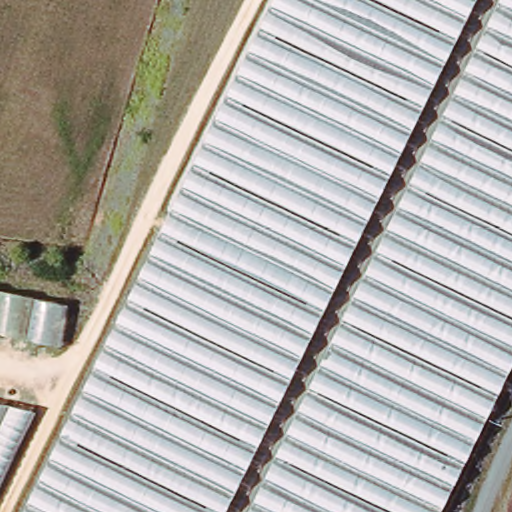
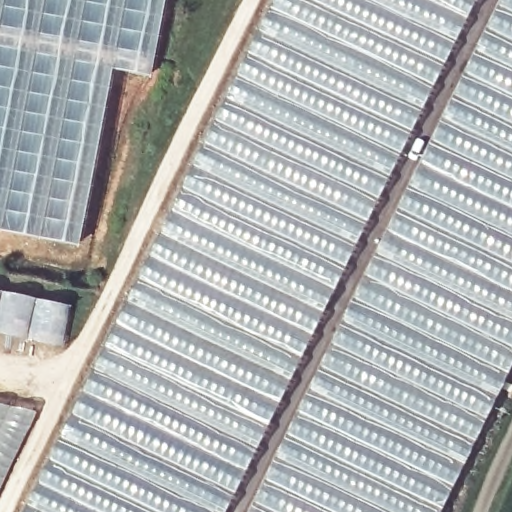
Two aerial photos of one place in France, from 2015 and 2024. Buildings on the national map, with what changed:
new [(151,74),(112,67),(80,243),(0,227),(0,0),(165,0),(151,74)]
unchanged [(226,512),(25,512),(115,329),(279,0),(475,0),(226,512)]
unchanged [(444,512),(239,512),(495,0),(512,0),(512,374),(480,439),(444,512)]
unchanged [(72,298),(63,346),(0,331),(0,283),(72,298)]
unchanged [(41,406),(0,492),(0,399),(41,406)]

